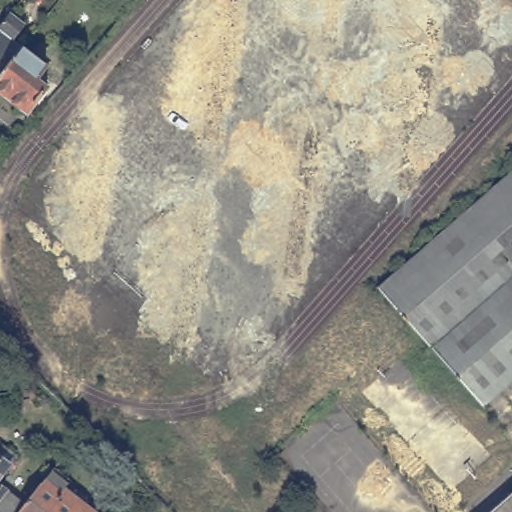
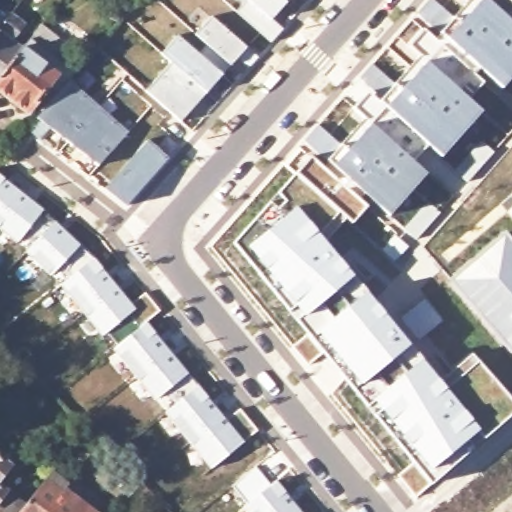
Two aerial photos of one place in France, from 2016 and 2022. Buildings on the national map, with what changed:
new [(413,497),(396,477),(409,462),(230,244),(286,175),(308,149),(323,160),(360,118),(350,109),(365,93),(376,101),(415,57),(405,46),(421,29),(434,40),(438,34),(467,0),(512,0),(512,76),(499,90),(483,75),(465,96),(479,111),(436,158),(422,145),(409,160),(423,172),(385,217),(368,200),(349,223),(342,216),(327,235),(361,276),(355,281),(440,380),(470,354),(478,362),(512,401),(512,413),(428,484),(413,497)]
new [(281,28),(269,43),(233,13),(243,1),(242,0),(287,0),(269,19),(281,28)]
unchanged [(28,28),(16,44),(26,51),(0,85),(0,36),(14,16),(28,28)]
new [(242,51),(255,58),(245,68),(231,62),(220,74),(178,123),(143,91),(168,64),(159,56),(176,35),(195,53),(204,44),(193,35),(209,16),(246,46),(242,51)]
unchanged [(0,85),(26,51),(49,70),(39,81),(51,91),(32,115),(0,90),(0,85)]
new [(96,166),(35,118),(68,81),(127,131),(96,166)]
new [(123,206),(101,190),(146,139),(168,157),(123,206)]
demolished [(512,168),(512,378),(480,406),(376,286),(512,168)]
new [(210,469),(111,348),(113,346),(108,338),(100,344),(50,284),(14,250),(0,238),(0,172),(49,209),(86,244),(101,261),(133,299),(141,294),(157,312),(145,321),(188,374),(224,419),(237,409),(255,431),(242,442),(210,469)]
new [(509,357),(443,281),(501,230),(512,242),(512,359),(509,357)]
unchanged [(33,398),(30,401),(17,391),(29,376),(48,393),(39,403),(33,398)]
unchanged [(0,479),(0,447),(16,459),(0,479)]
unchanged [(23,509),(50,473),(66,486),(63,490),(91,512),(21,512),(23,509)]
new [(241,507),(274,480),(301,512),(246,512),(241,507)]
unchanged [(0,490),(23,509),(21,512),(0,512),(0,490)]
demolished [(512,494),(512,512),(491,512),(512,494)]

